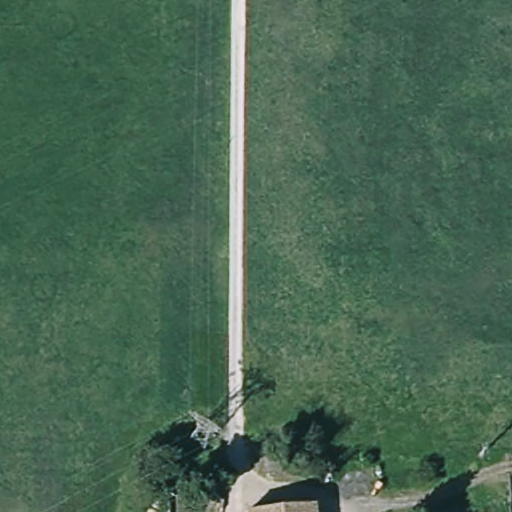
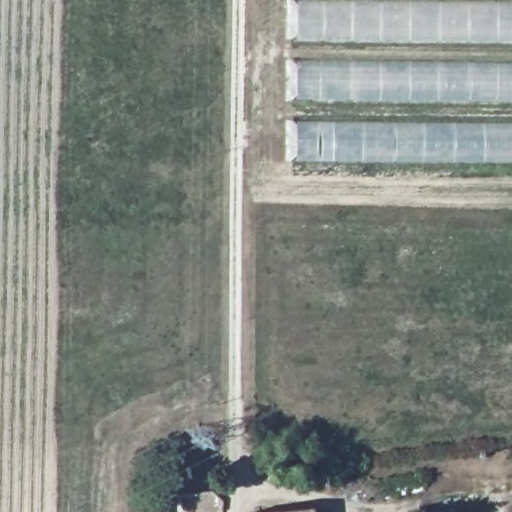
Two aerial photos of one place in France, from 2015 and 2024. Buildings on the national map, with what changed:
new [(296,38),(297,3),(512,5),(512,40),(296,38)]
new [(512,65),(512,100),(296,99),(297,62),(512,65)]
new [(297,160),(296,120),(512,121),(512,162),(297,160)]
unchanged [(309,506),(309,512),(248,512),(309,506)]
new [(457,511),(457,512),(447,512),(457,511)]

